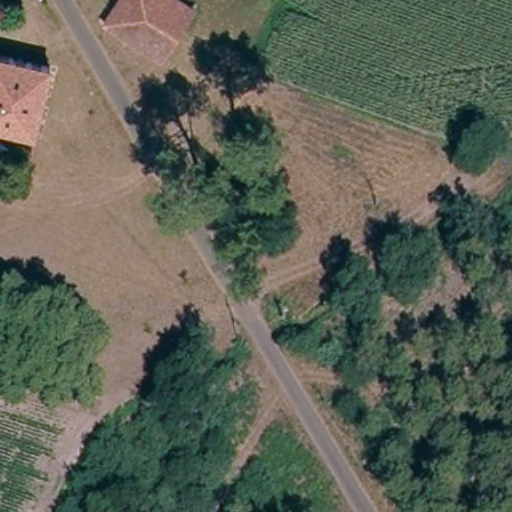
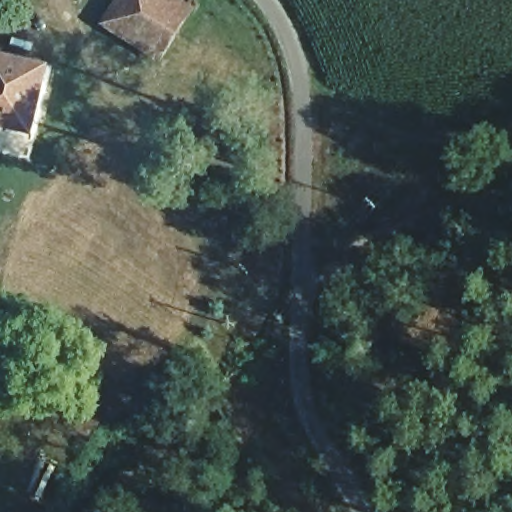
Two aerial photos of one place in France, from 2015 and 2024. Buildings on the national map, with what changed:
unchanged [(110,22),(101,17),(112,0),(115,0),(121,4),(123,0),(175,0),(197,14),(166,62),(109,26),(110,22)]
unchanged [(0,60),(47,72),(31,139),(0,131),(0,60)]
unchanged [(289,297),(296,305),(287,311),(282,303),(289,297)]

